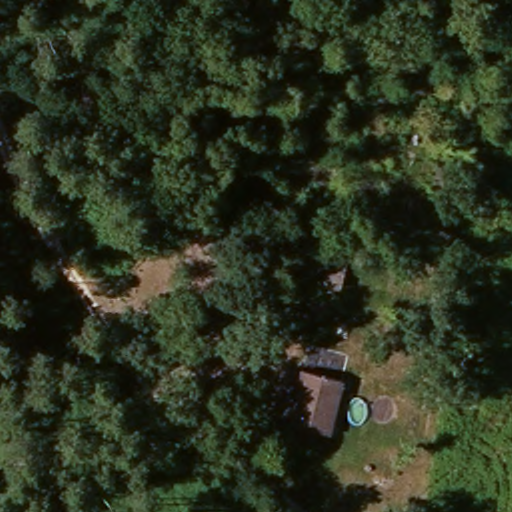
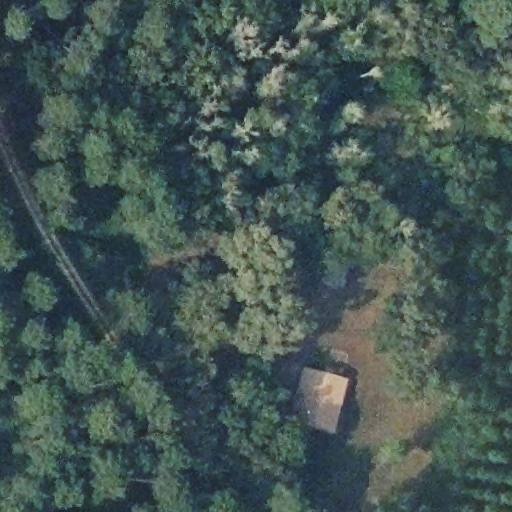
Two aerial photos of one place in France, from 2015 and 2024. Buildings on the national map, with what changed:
unchanged [(216,310),(227,317),(211,339),(201,330),(216,310)]
unchanged [(333,428),(288,420),(295,365),(337,374),(333,428)]

